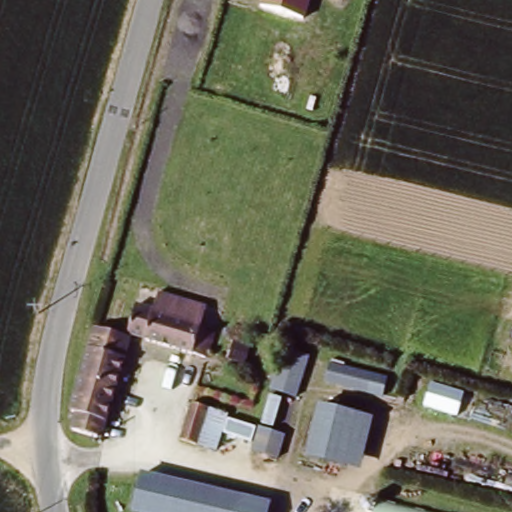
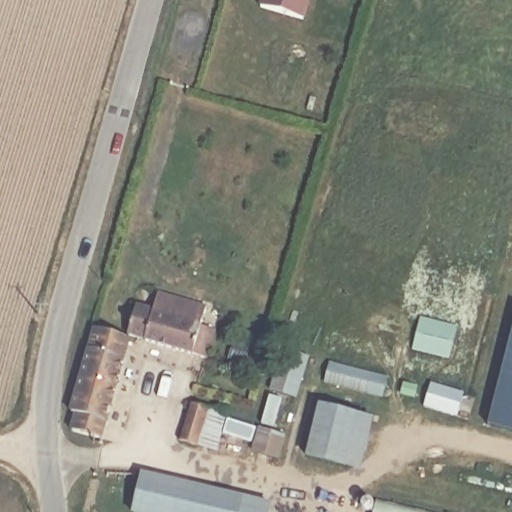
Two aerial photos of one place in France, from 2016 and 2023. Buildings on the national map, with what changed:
unchanged [(261,0),(311,0),(305,19),(260,6),(261,0)]
unchanged [(111,326),(115,313),(125,317),(129,304),(207,330),(199,358),(120,334),(122,329),(111,326)]
unchanged [(63,412),(81,348),(87,328),(119,338),(114,357),(96,421),(63,412)]
new [(490,425),(512,334),(512,431),(490,425)]
unchanged [(315,359),(279,461),(250,454),(283,349),(315,359)]
unchanged [(324,383),(329,364),(387,378),(382,398),(324,383)]
unchanged [(236,457),(192,446),(172,440),(187,393),(201,397),(197,407),(202,409),(243,419),(236,457)]
unchanged [(377,417),(361,482),(304,467),(314,401),(377,417)]
unchanged [(271,504),(269,512),(130,512),(140,474),(271,504)]
unchanged [(371,512),(375,498),(433,512),(371,512)]

